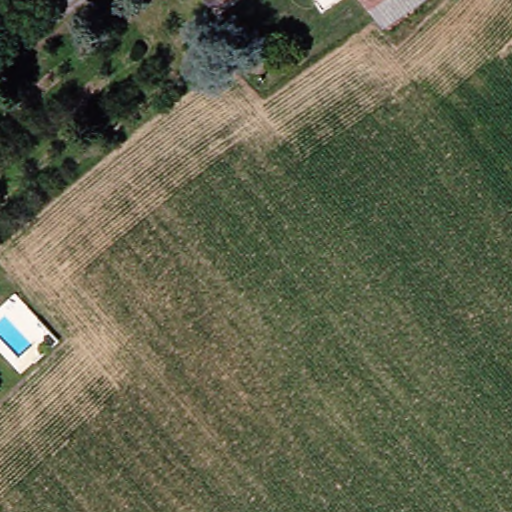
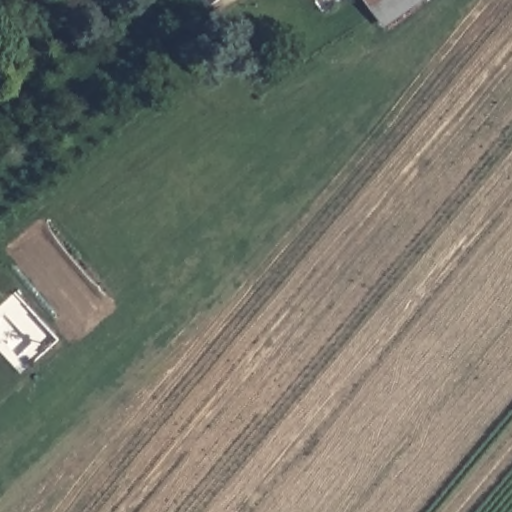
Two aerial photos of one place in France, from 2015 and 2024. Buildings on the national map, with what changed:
unchanged [(219,0),(224,0),(220,2),(219,0)]
unchanged [(380,6),(376,0),(432,0),(394,27),(380,6)]

